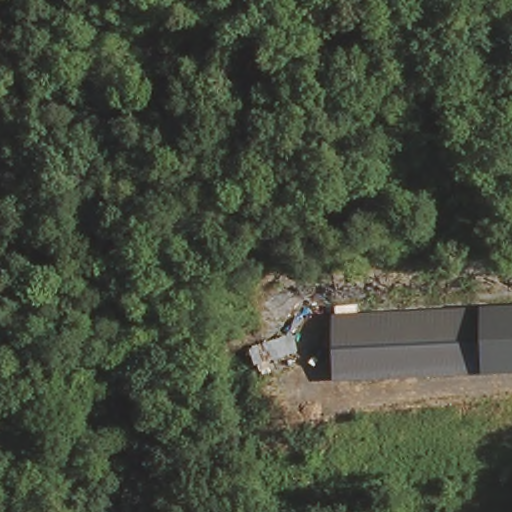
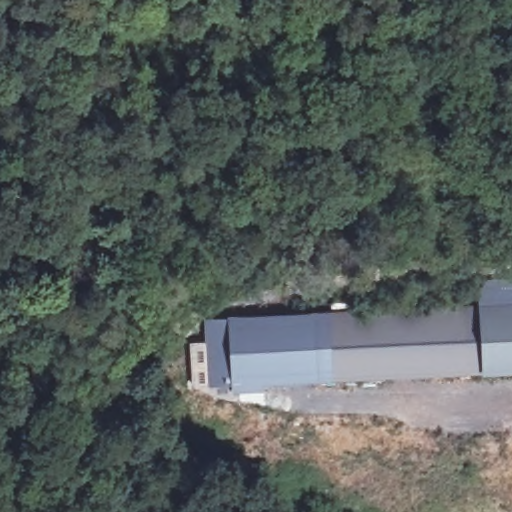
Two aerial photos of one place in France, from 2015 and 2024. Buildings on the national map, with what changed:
new [(512,281),(512,304),(480,305),(480,282),(512,281)]
unchanged [(330,314),(512,304),(512,375),(332,382),(330,314)]
new [(332,382),(231,390),(231,382),(206,385),(205,320),(226,318),(330,314),(332,382)]

